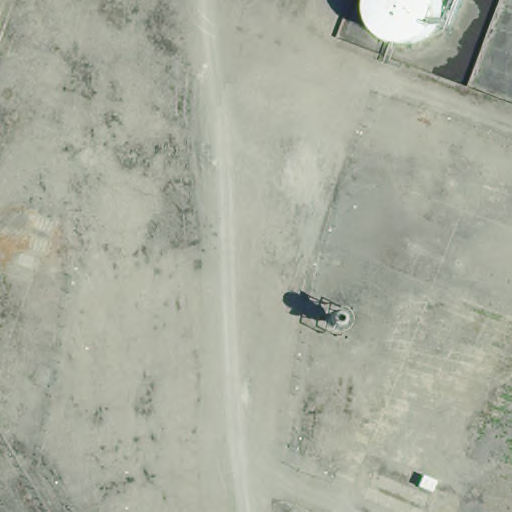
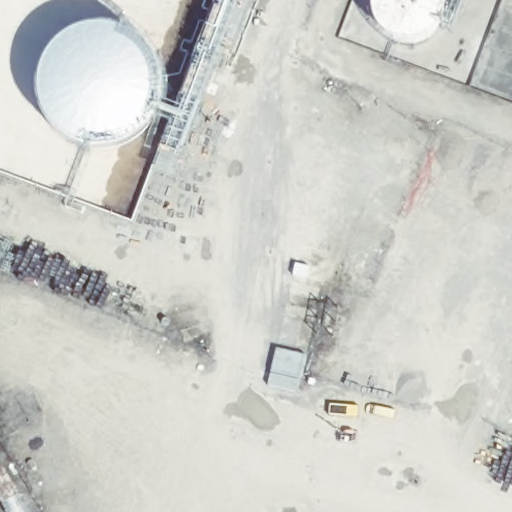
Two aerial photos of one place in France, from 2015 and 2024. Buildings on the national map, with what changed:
new [(38,76),(39,68),(43,59),(47,52),(53,44),(58,38),(65,33),(73,29),(82,25),(90,24),(99,23),(108,24),(117,25),(125,29),(133,33),(140,38),(146,44),(152,52),(156,59),(159,68),(161,76),(161,85),(161,94),(159,103),(156,111),(152,119),(146,126),(140,132),(133,138),(125,142),(117,145),(108,147),(99,147),(90,147),(82,145),(73,142),(65,138),(58,132),(53,126),(47,119),(43,111),(39,103),(38,94),(37,85),(38,76)]

